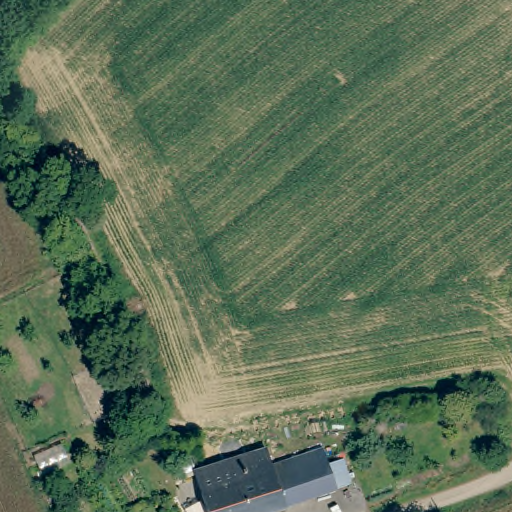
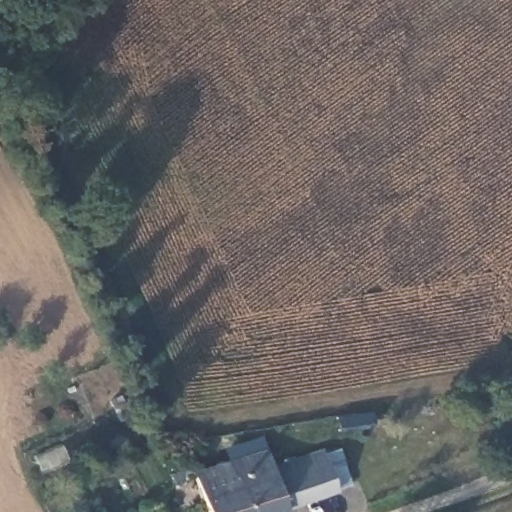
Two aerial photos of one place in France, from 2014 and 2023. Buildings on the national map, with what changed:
unchanged [(267,512),(208,512),(199,487),(190,488),(185,472),(188,472),(268,445),(274,462),(325,448),(338,487),(267,512)]

